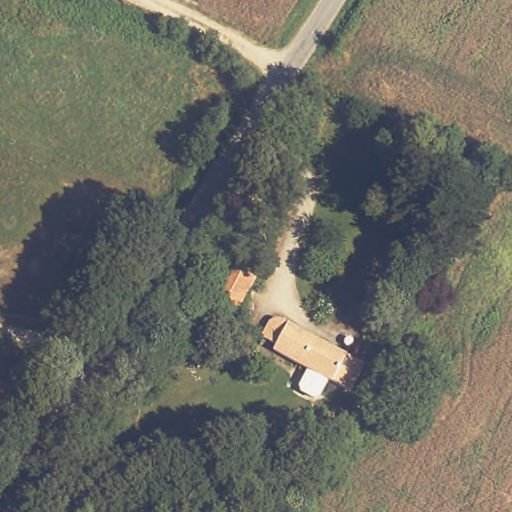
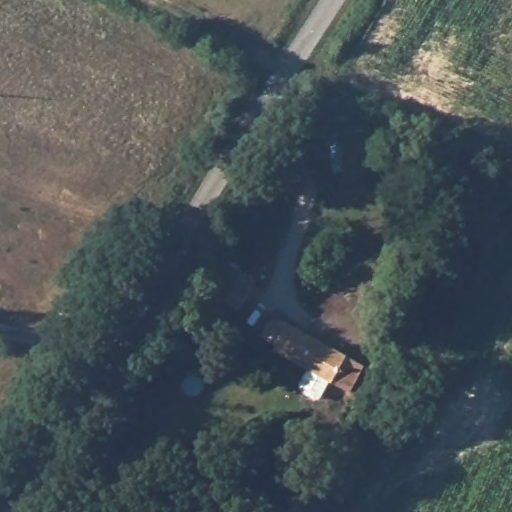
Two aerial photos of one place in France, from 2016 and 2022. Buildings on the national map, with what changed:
unchanged [(259,287),(243,320),(215,306),(231,274),(259,287)]
unchanged [(265,320),(266,319),(268,317),(270,316),(272,316),(274,315),(276,315),(278,316),(363,358),(349,385),(327,374),(319,391),(314,393),(301,387),(299,381),(307,364),(271,347),(273,342),(258,334),(265,320)]

